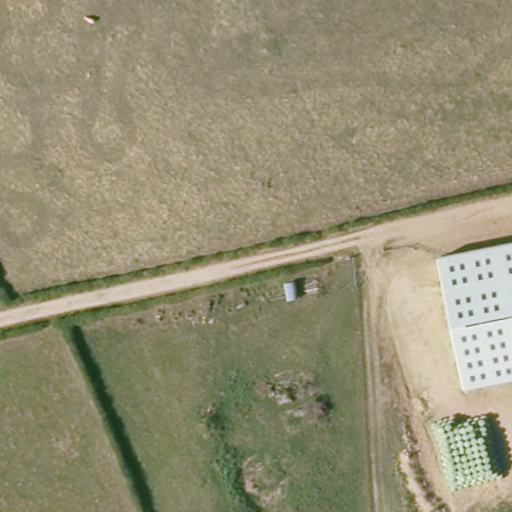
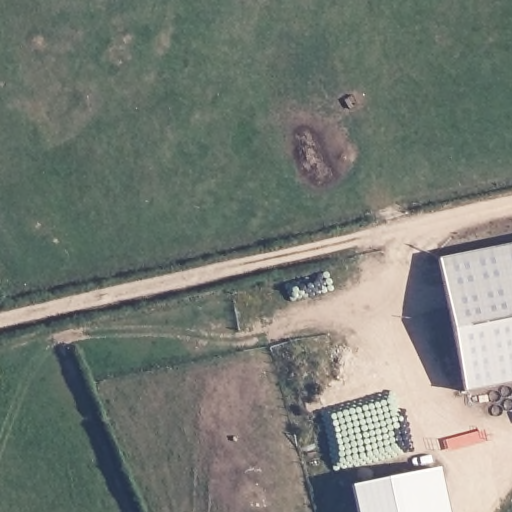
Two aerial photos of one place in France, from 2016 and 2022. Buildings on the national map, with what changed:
unchanged [(464,390),(437,258),(512,243),(512,381),(464,390)]
new [(350,485),(439,468),(448,512),(355,512),(350,485)]

